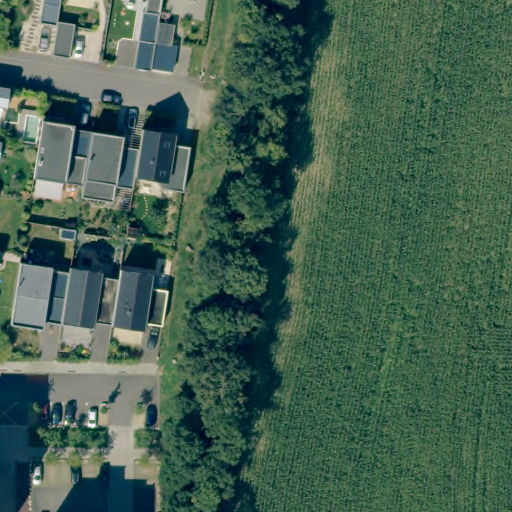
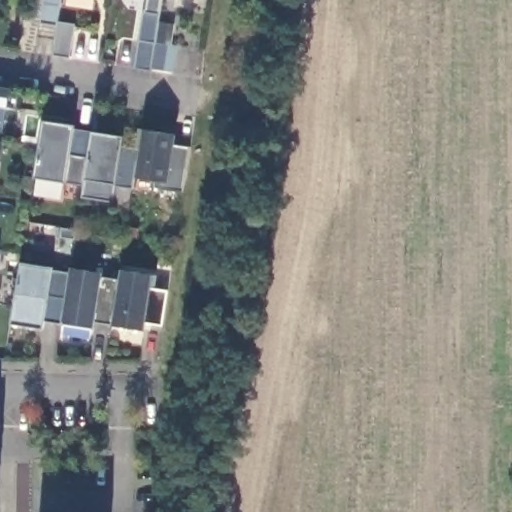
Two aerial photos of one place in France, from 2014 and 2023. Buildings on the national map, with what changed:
unchanged [(53,44),(56,24),(39,21),(42,0),(60,0),(57,19),(74,23),(69,56),(51,54),(53,44)]
unchanged [(155,40),(154,42),(137,39),(142,9),(144,10),(146,0),(161,0),(157,22),(172,24),(169,42),(155,40)]
unchanged [(6,106),(0,105),(0,85),(9,86),(6,106)]
unchanged [(37,145),(42,113),(64,116),(63,121),(74,123),(73,126),(90,129),(86,158),(82,184),(33,176),(37,145)]
unchanged [(174,132),(172,142),(189,144),(186,164),(182,190),(160,187),(154,179),(134,175),(138,152),(138,147),(141,127),(174,132)]
unchanged [(81,193),(82,184),(86,158),(90,129),(91,129),(123,134),(121,144),(138,147),(138,152),(134,175),(132,185),(132,188),(115,184),(112,200),(80,195),(81,193)]
unchanged [(0,146),(0,140),(1,140),(0,146)]
unchanged [(74,238),(59,235),(60,225),(75,228),(74,238)]
unchanged [(52,265),(51,268),(68,271),(60,323),(43,320),(43,324),(35,323),(35,326),(10,322),(13,305),(19,261),(52,265)]
unchanged [(152,285),(167,288),(161,324),(144,322),(143,329),(111,324),(119,269),(120,267),(154,273),(152,285)]

